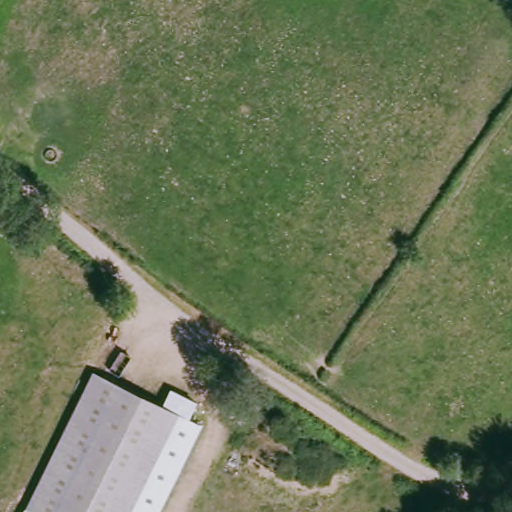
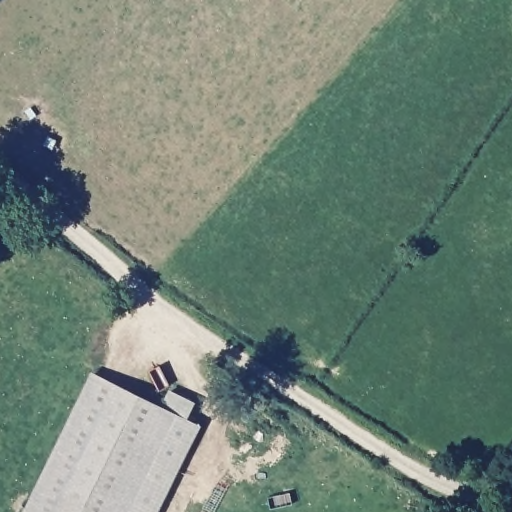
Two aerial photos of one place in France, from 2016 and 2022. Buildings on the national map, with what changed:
unchanged [(181,408),(132,512),(34,512),(29,510),(96,370),(181,408)]
unchanged [(180,411),(204,422),(160,512),(132,512),(180,411)]
unchanged [(34,512),(28,512),(29,510),(34,512)]

